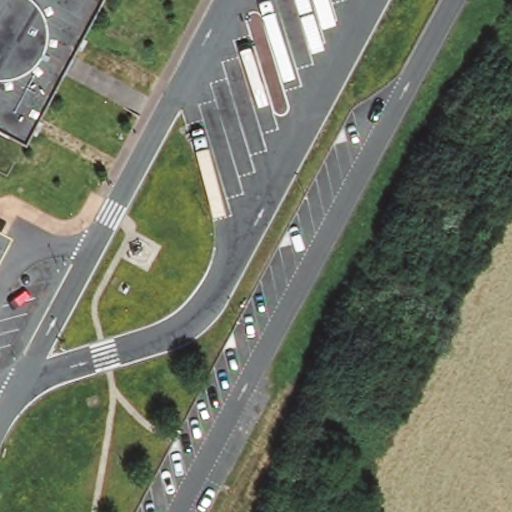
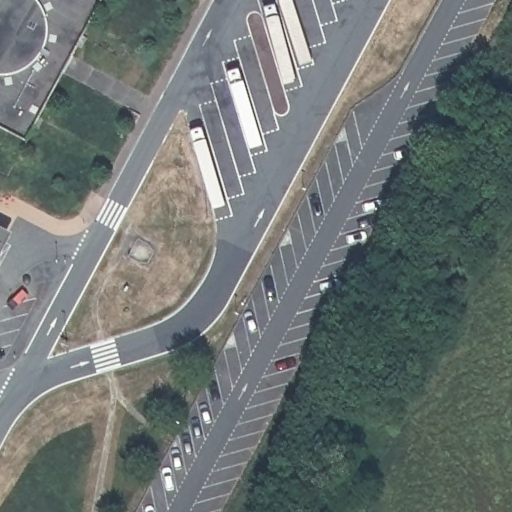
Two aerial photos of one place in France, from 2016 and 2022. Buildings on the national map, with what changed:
unchanged [(21,141),(0,130),(0,0),(97,0),(21,141)]
unchanged [(0,247),(0,230),(7,233),(0,247)]

